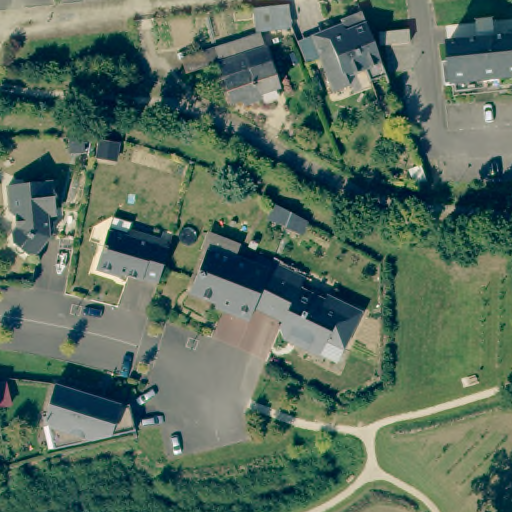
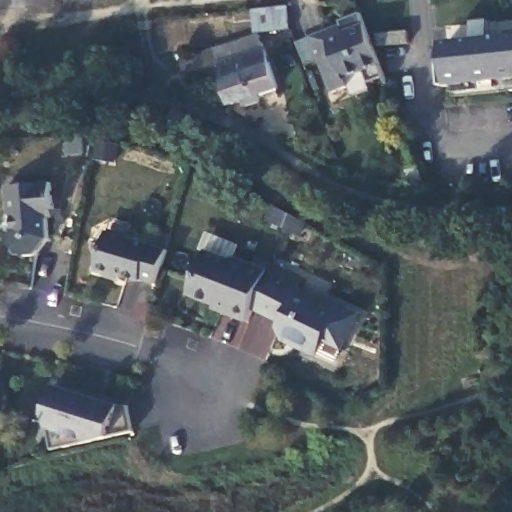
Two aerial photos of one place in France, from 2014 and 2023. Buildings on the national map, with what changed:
unchanged [(293,10),(295,24),(296,34),(262,38),(261,27),(259,14),(293,10)]
unchanged [(381,65),(386,77),(370,83),(365,71),(345,79),(349,88),(333,94),(320,60),(310,64),(301,42),(302,42),(311,38),(342,26),(345,34),(365,25),(381,65)]
unchanged [(408,31),(409,43),(379,47),(378,34),(408,31)]
unchanged [(449,65),(455,64),(453,44),(486,40),(488,61),(502,60),(500,39),(512,37),(512,81),(451,87),(449,65)]
unchanged [(246,116),(246,108),(234,112),(223,72),(193,78),(189,60),(263,44),(279,101),(264,104),(265,112),(246,116)]
unchanged [(73,137),(84,137),(84,152),(69,152),(68,137),(73,137)]
unchanged [(61,209),(61,216),(53,217),(55,239),(42,255),(33,256),(18,244),(17,234),(22,229),(20,218),(15,213),(13,187),(58,182),(61,209)]
unchanged [(291,215),(305,222),(299,236),(285,230),(269,224),(276,207),(277,207),(291,215)]
unchanged [(158,283),(143,278),(142,281),(115,273),(115,276),(96,270),(108,232),(168,249),(158,283)]
unchanged [(266,295),(259,313),(254,326),(220,312),(222,308),(200,300),(197,293),(201,282),(208,278),(205,272),(212,256),(234,265),(241,262),(274,275),(266,295)]
unchanged [(277,268),(310,285),(305,295),(333,308),(335,303),(366,318),(348,354),(331,346),(324,361),(288,343),(284,333),(288,327),(259,313),(266,295),(274,275),(277,268)]
unchanged [(49,426),(45,427),(44,417),(46,417),(46,415),(56,385),(91,396),(93,402),(106,406),(111,403),(124,407),(130,406),(136,432),(92,442),(54,450),(49,428),(49,426)]
unchanged [(2,413),(0,413),(0,406),(2,413)]

